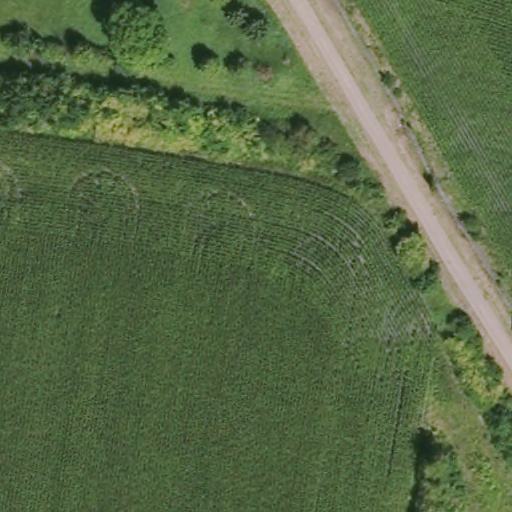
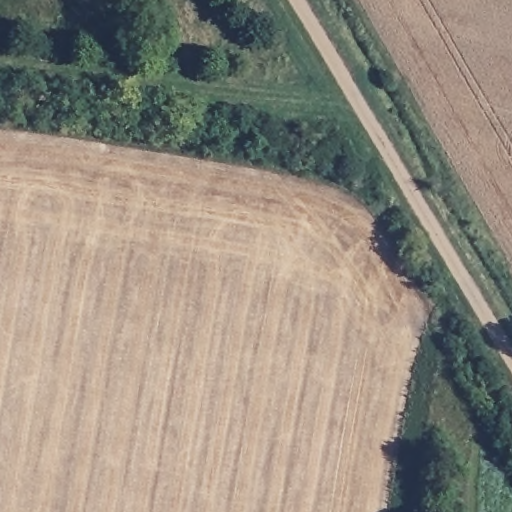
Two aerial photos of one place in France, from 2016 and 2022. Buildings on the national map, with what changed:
[]

